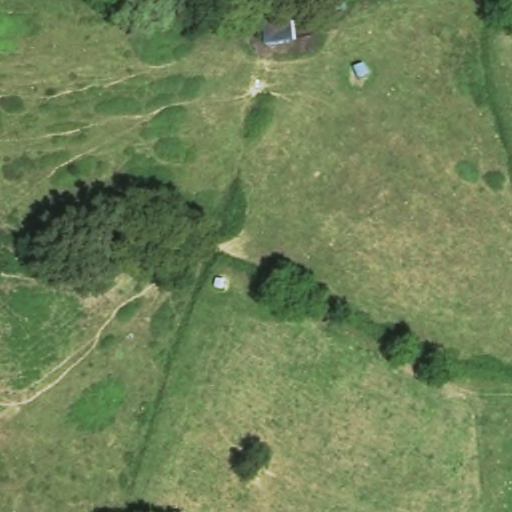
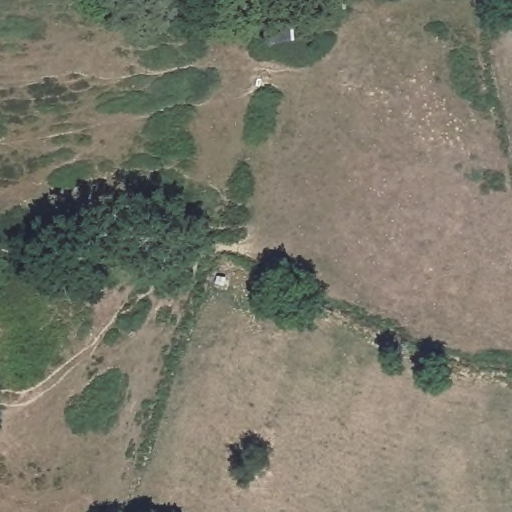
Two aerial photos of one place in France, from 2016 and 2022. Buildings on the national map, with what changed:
unchanged [(259,0),(343,0),(343,4),(319,6),(320,17),(287,18),(291,38),(261,44),(259,0)]
unchanged [(223,288),(210,285),(213,269),(227,274),(223,288)]

